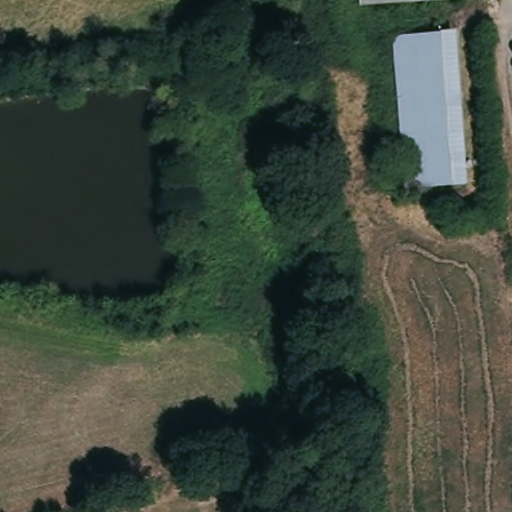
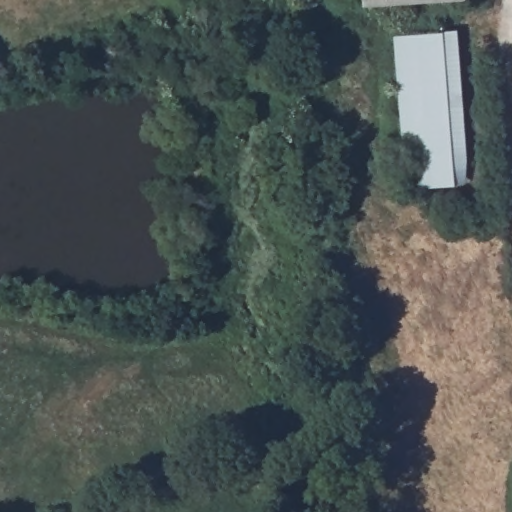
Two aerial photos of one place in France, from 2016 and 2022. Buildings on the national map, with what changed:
unchanged [(360,10),(359,0),(460,0),(461,4),(360,10)]
unchanged [(398,37),(446,33),(458,185),(410,189),(398,37)]

